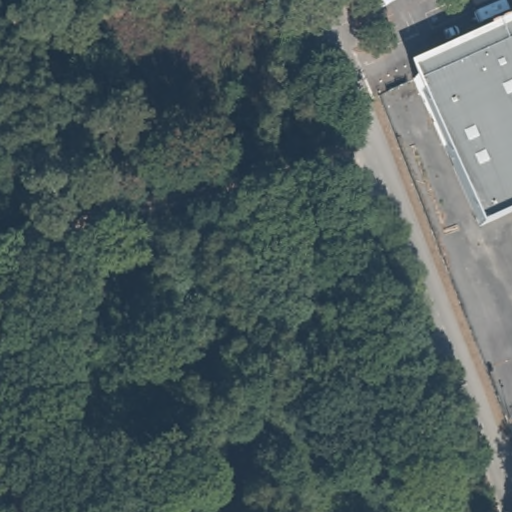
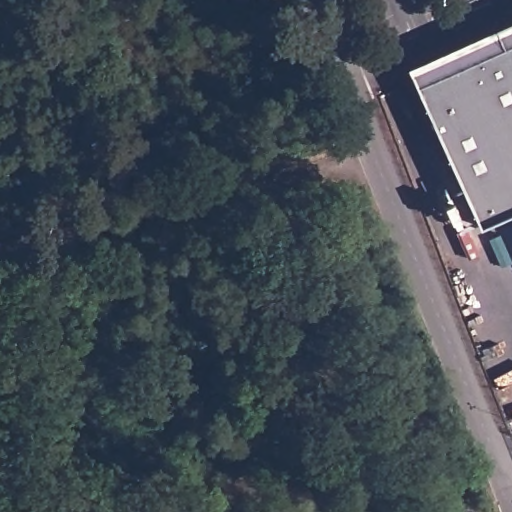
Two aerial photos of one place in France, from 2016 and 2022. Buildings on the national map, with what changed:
unchanged [(475,221),(407,76),(509,31),(507,25),(512,23),(512,205),(475,221)]

